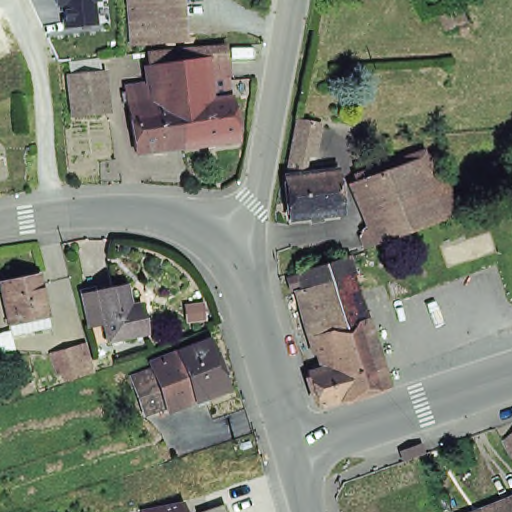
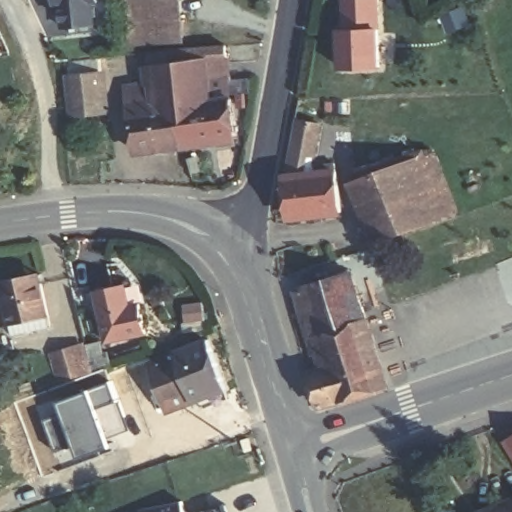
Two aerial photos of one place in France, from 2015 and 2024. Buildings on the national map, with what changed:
unchanged [(97,4),(99,25),(67,28),(64,6),(55,7),(54,0),(101,0),(102,3),(97,4)]
unchanged [(135,41),(131,0),(182,0),(185,37),(135,41)]
new [(339,68),(337,0),(376,0),(377,67),(339,68)]
new [(465,4),(472,24),(447,34),(439,14),(465,4)]
unchanged [(235,113),(238,145),(185,154),(178,106),(172,58),(226,53),(227,66),(207,68),(212,107),(232,105),(231,96),(245,94),(247,111),(235,113)]
unchanged [(185,154),(164,157),(155,81),(152,60),(172,58),(178,106),(185,154)]
unchanged [(97,76),(101,115),(72,119),(67,79),(97,76)]
unchanged [(155,81),(164,157),(137,160),(129,84),(155,81)]
demolished [(300,125),(307,96),(340,104),(333,132),(325,131),(300,125)]
unchanged [(325,131),(320,160),(310,159),(299,177),(285,180),(293,152),(300,125),(325,131)]
unchanged [(430,157),(451,216),(437,221),(415,229),(413,229),(377,242),(355,183),(348,167),(366,161),(368,167),(379,163),(382,172),(415,162),(430,157)]
unchanged [(299,177),(337,173),(342,215),(290,222),(285,180),(299,177)]
unchanged [(368,322),(312,338),(299,295),(305,292),(300,275),(340,262),(345,280),(355,277),(368,322)]
unchanged [(12,316),(10,316),(2,277),(42,267),(50,308),(53,320),(14,328),(12,316)]
unchanged [(127,307),(137,306),(142,335),(103,343),(95,310),(81,312),(77,292),(83,291),(85,296),(92,294),(123,287),(127,307)]
unchanged [(308,376),(322,372),(312,338),(368,322),(387,387),(354,398),(319,410),(308,376)]
unchanged [(214,333),(233,380),(202,393),(183,346),(214,333)]
unchanged [(87,341),(95,369),(73,377),(72,372),(63,373),(57,352),(87,341)]
unchanged [(157,357),(183,346),(202,393),(175,404),(157,358),(157,357)]
new [(129,428),(57,453),(47,422),(65,415),(62,403),(115,384),(129,428)]
unchanged [(506,434),(512,430),(512,445),(506,434)]
unchanged [(484,507),(512,495),(512,512),(486,512),(484,507)]
unchanged [(143,508),(166,500),(169,509),(187,503),(191,512),(145,512),(143,508)]
unchanged [(225,512),(192,512),(221,502),(225,512)]
unchanged [(484,507),(486,512),(470,512),(484,507)]

